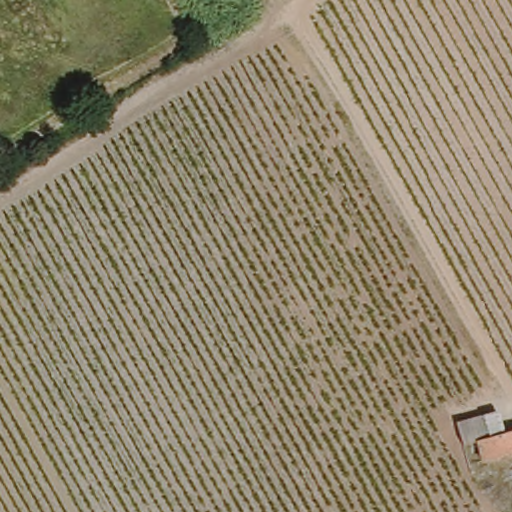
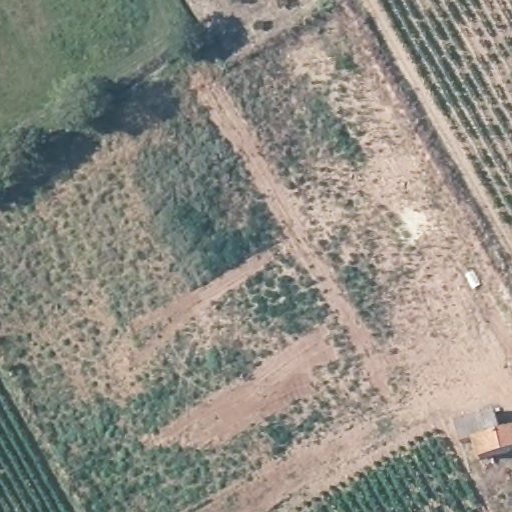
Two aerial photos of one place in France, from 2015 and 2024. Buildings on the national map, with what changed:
unchanged [(512,419),(512,454),(484,462),(475,440),(459,444),(453,414),(495,404),(512,419)]

